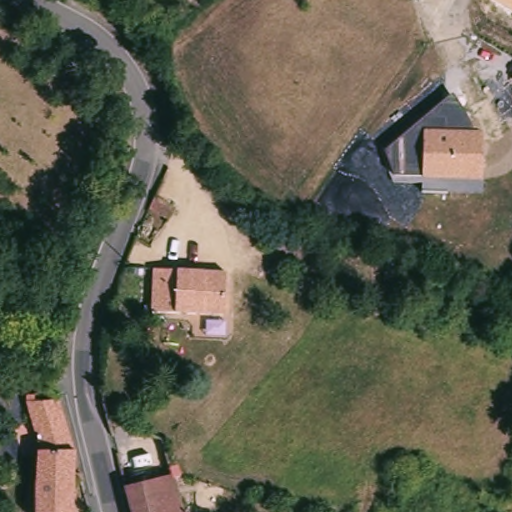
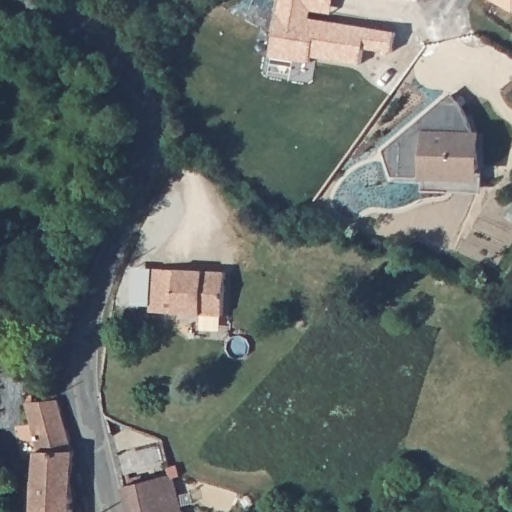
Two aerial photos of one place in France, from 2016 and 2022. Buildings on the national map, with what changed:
new [(307,8),(305,21),(330,25),(330,21),(397,32),(394,53),(365,48),(362,64),(313,56),(312,63),(271,56),(281,0),(334,0),(332,12),(307,8)]
unchanged [(511,11),(491,0),(512,0),(512,11),(511,11)]
unchanged [(470,113),(477,133),(483,133),(482,175),(485,175),(484,195),(422,195),(422,177),(394,177),(385,150),(456,93),(470,113)]
unchanged [(172,225),(155,213),(160,200),(174,208),(180,212),(172,225)]
unchanged [(222,309),(155,305),(156,271),(224,275),(222,309)]
unchanged [(75,463),(75,480),(80,479),(82,488),(74,490),(74,503),(57,502),(56,489),(56,488),(40,488),(39,452),(26,409),(25,401),(32,400),(34,408),(58,405),(75,463)]
unchanged [(180,512),(130,512),(124,486),(170,474),(180,512)]
unchanged [(73,512),(38,512),(40,488),(56,488),(56,489),(57,502),(74,503),(73,512)]

